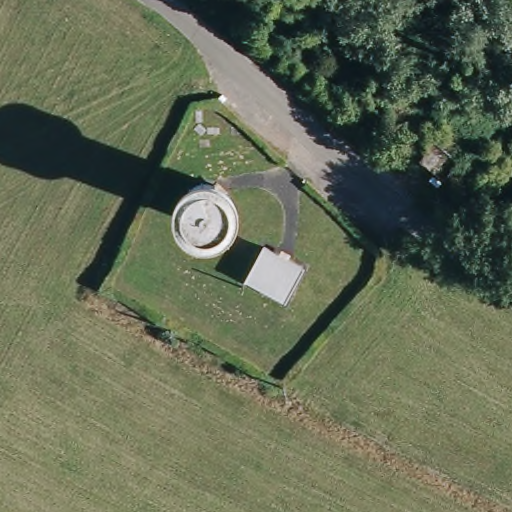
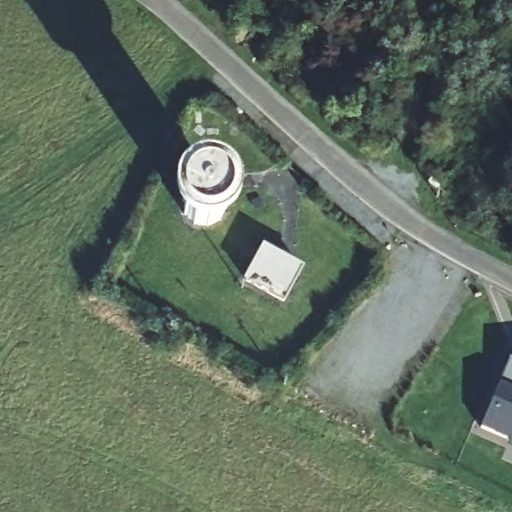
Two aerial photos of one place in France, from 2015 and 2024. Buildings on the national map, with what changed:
unchanged [(261,253),(296,273),(284,300),(246,279),(261,253)]
new [(507,447),(509,442),(481,429),(509,360),(512,359),(512,450),(507,447)]

